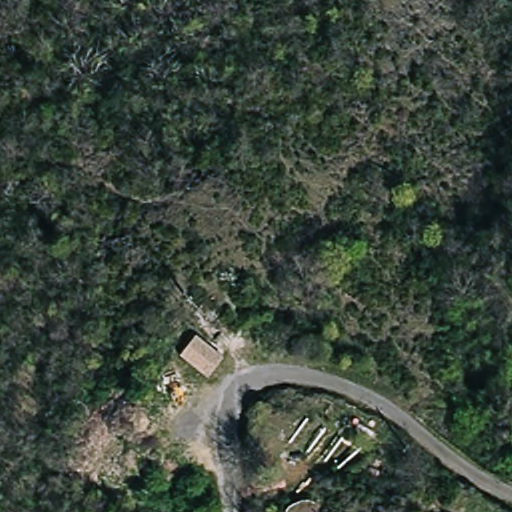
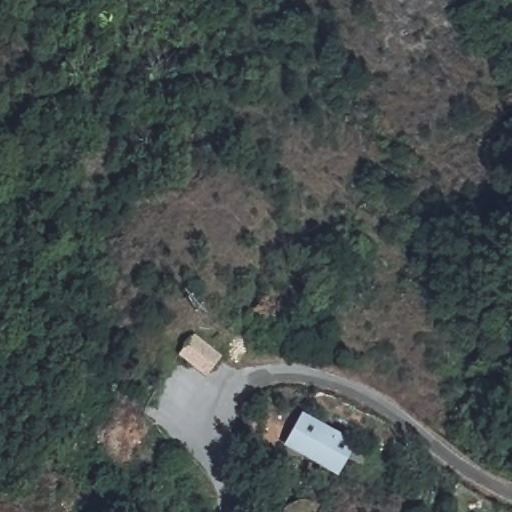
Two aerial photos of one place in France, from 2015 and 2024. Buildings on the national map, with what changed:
unchanged [(226,362),(216,376),(179,354),(190,332),(227,353),(226,362)]
new [(305,413),(352,440),(345,452),(338,465),(286,436),(305,413)]

